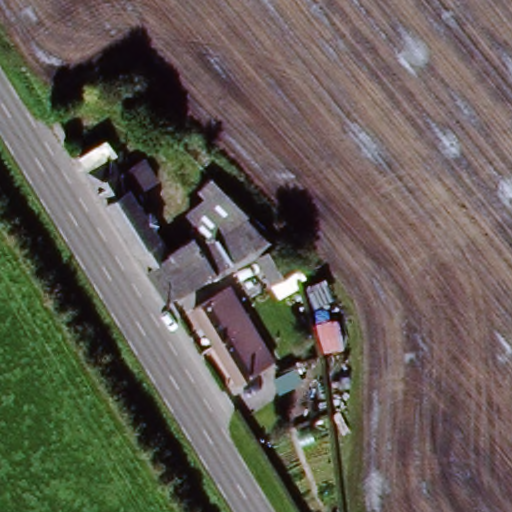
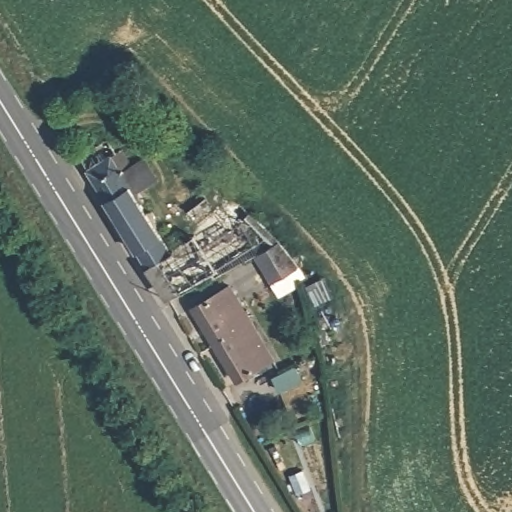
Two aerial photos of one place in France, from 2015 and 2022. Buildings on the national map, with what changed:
unchanged [(137,171),(146,166),(161,185),(141,199),(175,253),(178,258),(155,271),(96,171),(87,156),(112,143),(123,158),(126,156),(137,171)]
unchanged [(247,222),(263,248),(181,293),(170,273),(159,278),(155,271),(178,258),(175,253),(195,242),(196,233),(230,214),(247,222)]
unchanged [(247,326),(216,346),(193,312),(221,295),(233,311),(237,309),(247,326)]
unchanged [(270,372),(266,367),(240,383),(216,346),(247,326),(260,346),(265,344),(278,366),(270,372)]

